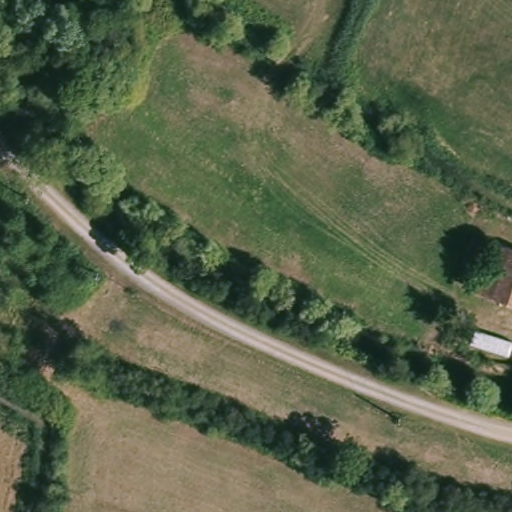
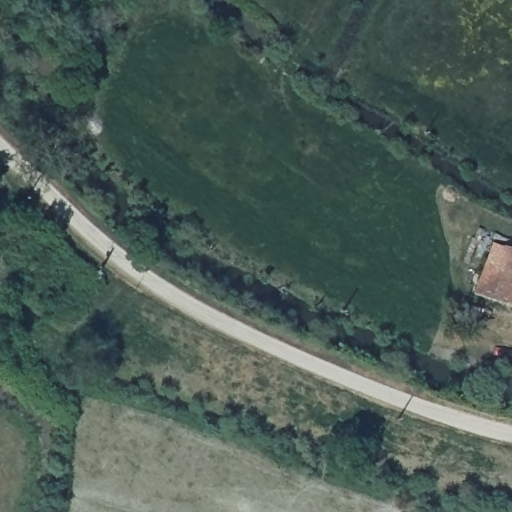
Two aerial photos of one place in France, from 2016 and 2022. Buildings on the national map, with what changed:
unchanged [(512,301),(482,290),(500,237),(512,242),(512,301)]

